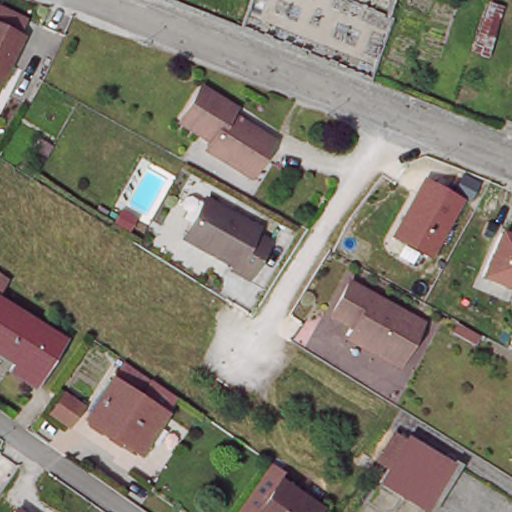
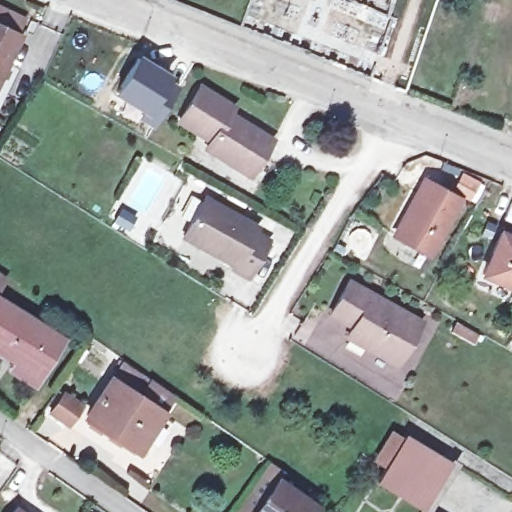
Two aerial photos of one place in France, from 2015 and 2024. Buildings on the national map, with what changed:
unchanged [(497,10),(485,57),(470,53),(484,6),(497,10)]
unchanged [(20,20),(14,33),(20,35),(0,76),(0,11),(20,20)]
new [(137,53),(180,80),(152,126),(139,117),(142,112),(113,93),(137,53)]
unchanged [(235,169),(200,147),(205,139),(172,120),(194,86),(227,105),(220,116),(238,128),(240,124),(266,139),(254,158),(244,174),(235,169)]
unchanged [(457,203),(428,260),(392,237),(420,183),(457,203)]
unchanged [(256,226),(254,231),(269,239),(247,277),(232,268),(234,264),(184,236),(205,197),(256,226)]
unchanged [(512,236),(512,286),(482,273),(500,231),(512,236)]
unchanged [(392,360),(365,345),(368,341),(364,338),(361,342),(344,333),(350,323),(327,310),(344,278),(416,317),(392,360)]
unchanged [(55,339),(29,381),(4,366),(9,358),(0,352),(0,304),(55,339)]
unchanged [(76,425),(100,388),(102,389),(113,372),(130,384),(162,406),(151,421),(153,422),(129,459),(76,425)]
unchanged [(84,404),(67,430),(45,415),(60,390),(84,404)]
unchanged [(423,512),(420,512),(376,485),(386,470),(375,463),(392,438),(402,445),(405,440),(450,468),(423,512)]
unchanged [(317,506),(312,512),(254,512),(277,479),(317,506)]

